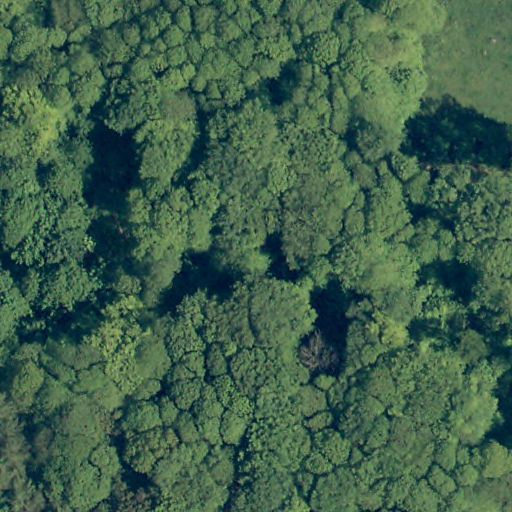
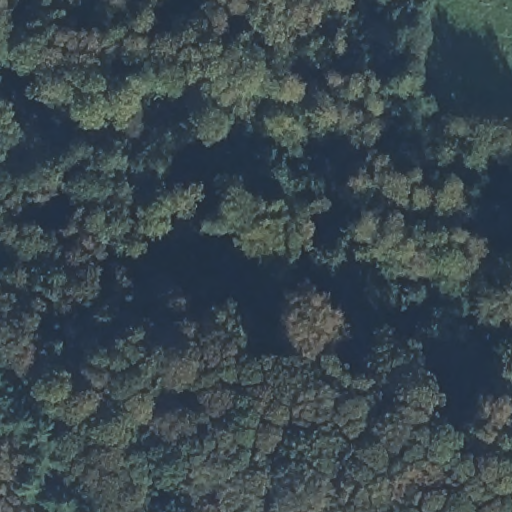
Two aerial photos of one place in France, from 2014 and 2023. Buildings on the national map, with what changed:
[]

